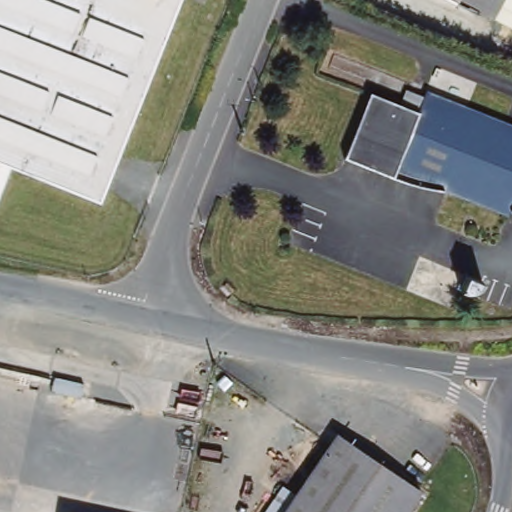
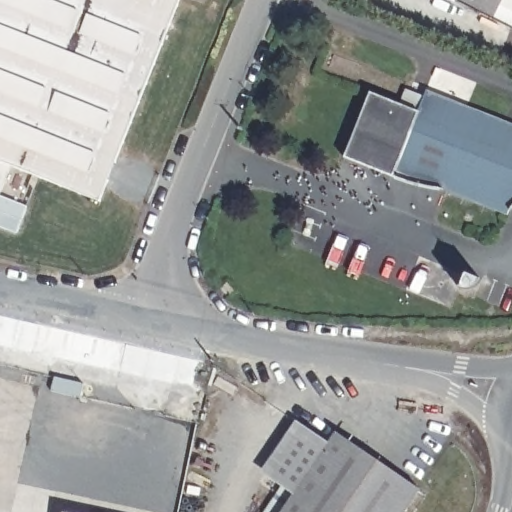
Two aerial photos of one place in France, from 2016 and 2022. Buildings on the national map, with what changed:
unchanged [(99,183),(91,205),(0,168),(0,0),(174,0),(99,183)]
unchanged [(488,21),(455,4),(448,0),(499,0),(488,21)]
unchanged [(488,21),(499,0),(512,0),(512,20),(507,30),(488,21)]
unchanged [(412,114),(419,97),(512,135),(512,196),(504,219),(391,172),(390,177),(342,160),(367,95),(412,114)]
unchanged [(479,275),(479,278),(478,281),(475,282),(473,282),(468,285),(464,287),(454,287),(457,268),(479,275)]
new [(293,493),(262,472),(296,422),(327,443),(293,493)]
unchanged [(414,493),(401,512),(280,512),(331,438),(414,493)]

